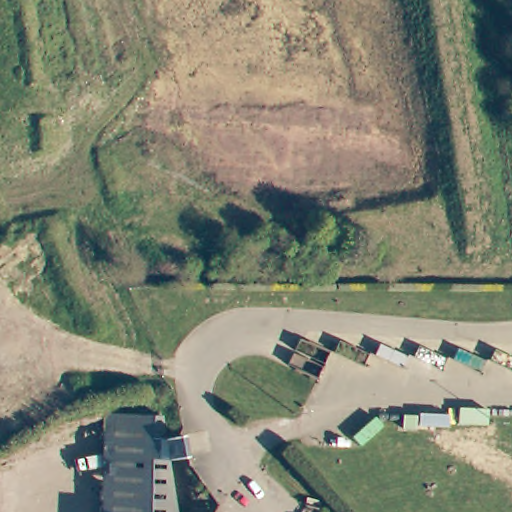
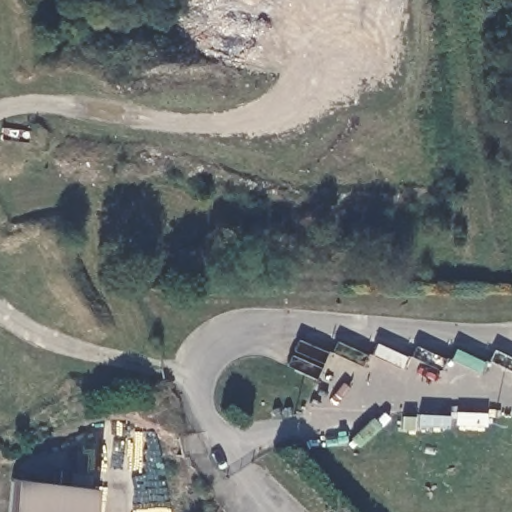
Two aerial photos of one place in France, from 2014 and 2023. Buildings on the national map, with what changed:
demolished [(106,413),(161,413),(164,436),(179,434),(182,456),(167,458),(175,512),(99,512),(106,413)]
new [(97,487),(93,512),(11,512),(15,477),(97,487)]

